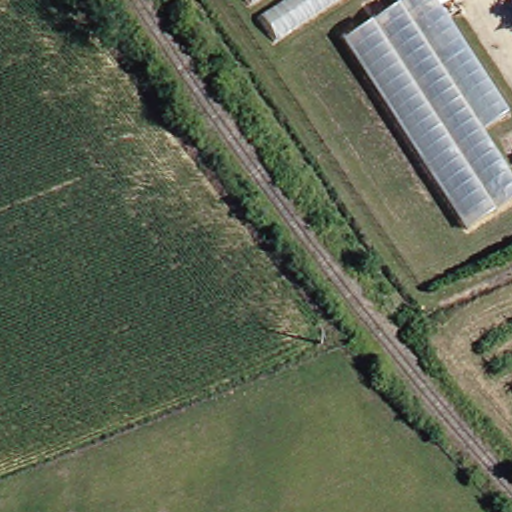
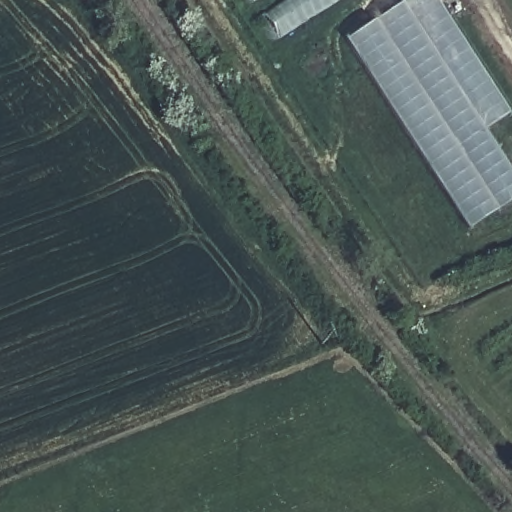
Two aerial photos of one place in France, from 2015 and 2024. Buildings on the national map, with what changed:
unchanged [(258,0),(259,0),(258,1),(258,0)]
unchanged [(268,22),(300,0),(343,0),(282,40),(268,22)]
unchanged [(512,116),(489,131),(512,167),(512,206),(478,230),(352,41),(415,0),(440,0),(512,105),(512,116)]

